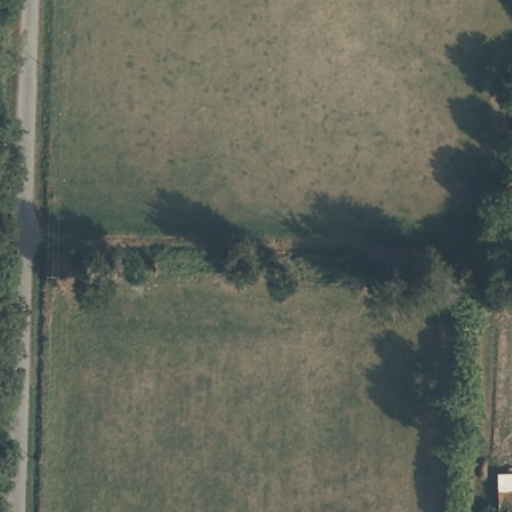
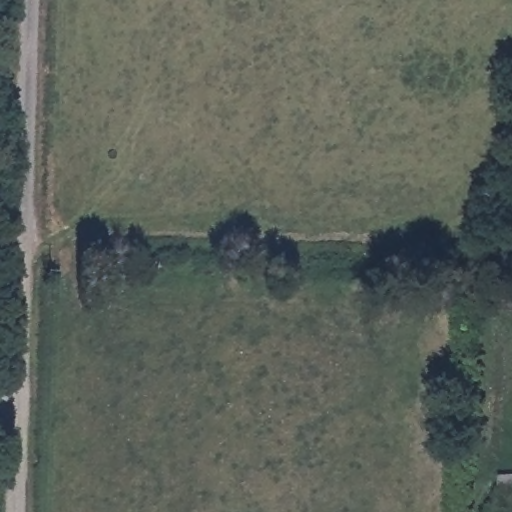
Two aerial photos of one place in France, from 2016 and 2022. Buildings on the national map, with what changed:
unchanged [(492,502),(501,501),(502,468),(512,468),(512,512),(492,512),(492,502)]

